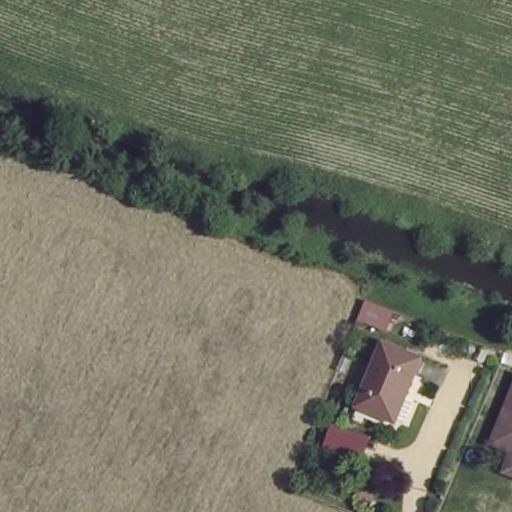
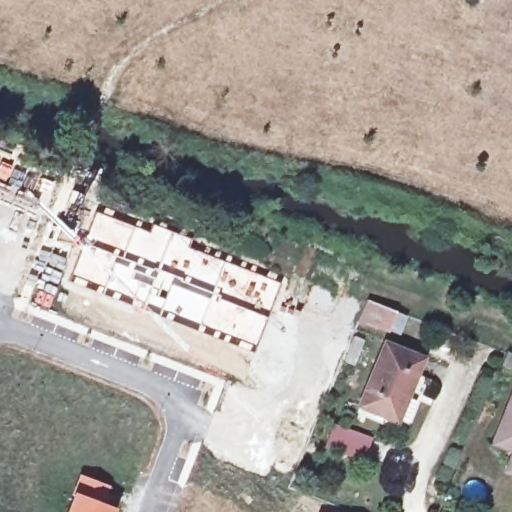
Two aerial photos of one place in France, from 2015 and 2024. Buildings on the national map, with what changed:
new [(71,282),(100,206),(284,277),(254,354),(71,282)]
unchanged [(400,307),(391,328),(359,315),(368,295),(400,307)]
unchanged [(424,359),(400,420),(361,404),(385,344),(424,359)]
unchanged [(493,438),(512,397),(512,447),(493,438)]
unchanged [(361,459),(335,452),(344,426),(372,434),(361,459)]
new [(64,512),(72,490),(80,473),(110,485),(105,502),(115,506),(113,512),(64,512)]

